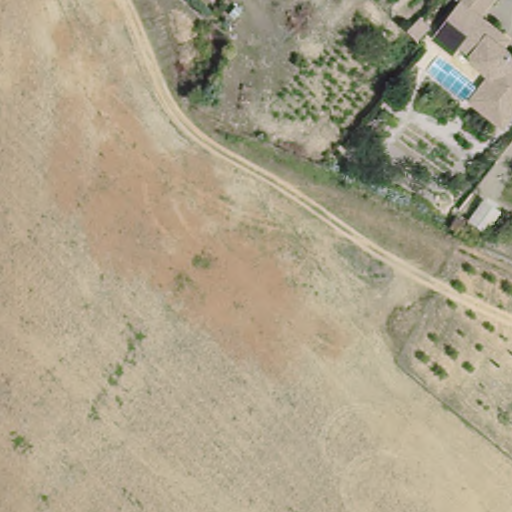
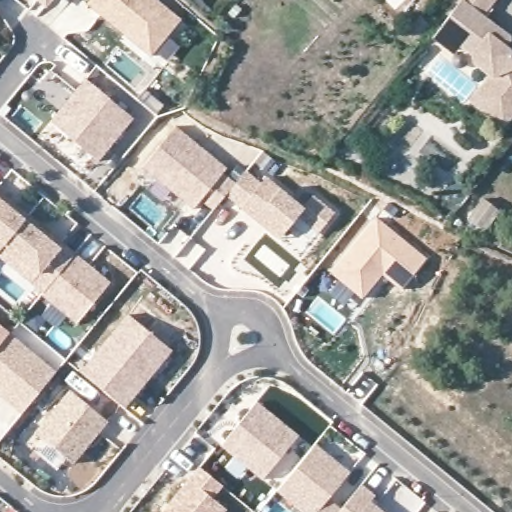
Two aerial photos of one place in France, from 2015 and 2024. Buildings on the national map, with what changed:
new [(146,50),(87,0),(160,0),(177,14),(146,50)]
unchanged [(512,49),(512,109),(505,119),(472,98),(489,68),(467,56),(466,41),(456,35),(459,30),(452,25),(466,0),(494,0),(483,19),(512,38),(507,46),(512,49)]
new [(10,10),(0,20),(0,1),(10,10)]
unchanged [(437,15),(422,29),(412,19),(427,5),(437,15)]
new [(132,108),(96,151),(48,111),(85,69),(132,108)]
new [(228,168),(223,172),(236,182),(247,170),(262,182),(268,176),(282,187),(305,207),(315,194),(335,212),(319,231),(297,215),(282,234),(278,238),(226,194),(212,210),(200,201),(193,208),(143,167),(177,125),(228,168)]
new [(22,208),(0,234),(0,190),(22,208)]
new [(71,244),(39,283),(0,250),(0,234),(22,208),(57,237),(59,234),(71,244)]
new [(425,252),(400,283),(381,267),(361,291),(330,265),(376,211),(425,252)]
new [(113,279),(82,318),(39,283),(71,244),(113,279)]
new [(120,401),(77,365),(125,307),(167,343),(120,401)]
new [(17,403),(0,388),(0,329),(3,325),(50,364),(17,403)]
new [(67,454),(30,423),(65,381),(102,412),(67,454)]
new [(257,474),(217,440),(252,397),(294,431),(257,474)]
new [(316,444),(350,472),(330,498),(337,504),(330,512),(303,512),(277,491),(316,444)]
new [(220,503),(212,512),(151,512),(194,460),(217,480),(207,492),(220,503)]
new [(330,512),(358,479),(372,490),(367,496),(387,512),(330,512)]

